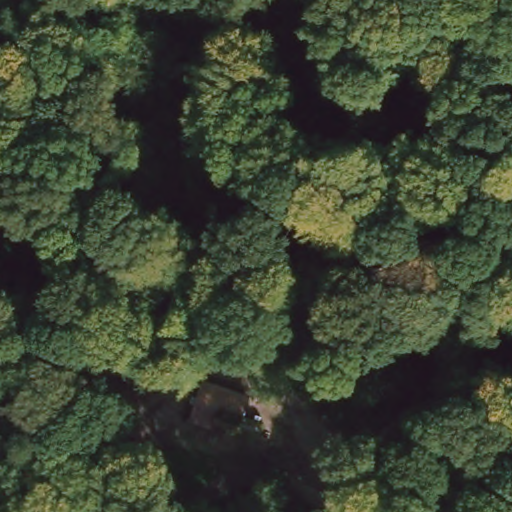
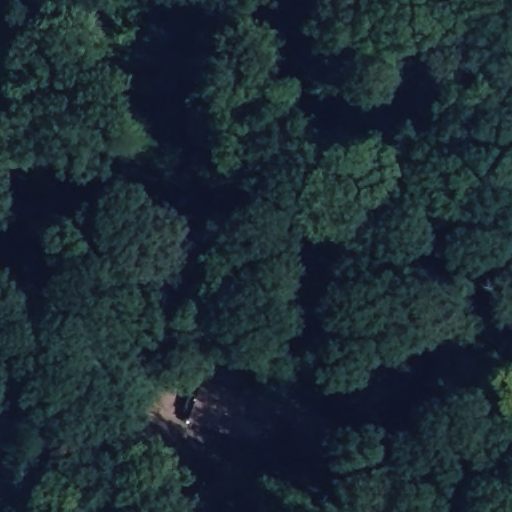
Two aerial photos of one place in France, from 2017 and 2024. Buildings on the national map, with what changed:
unchanged [(235,424),(229,441),(206,432),(212,416),(235,424)]

